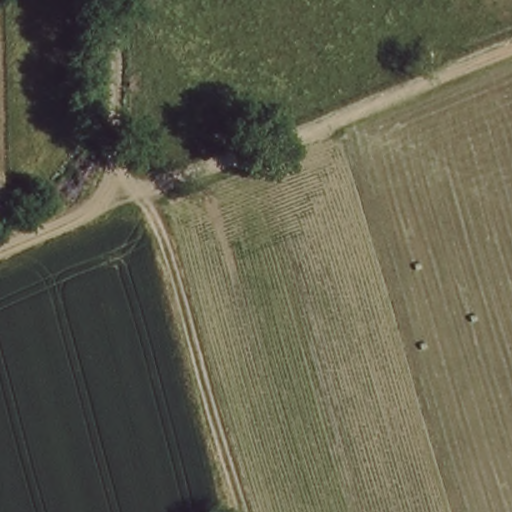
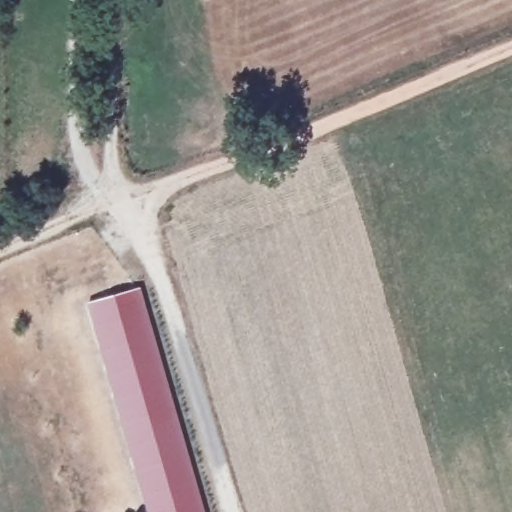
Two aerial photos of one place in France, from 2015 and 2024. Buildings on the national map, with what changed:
new [(206,512),(144,512),(85,302),(140,286),(206,512)]

